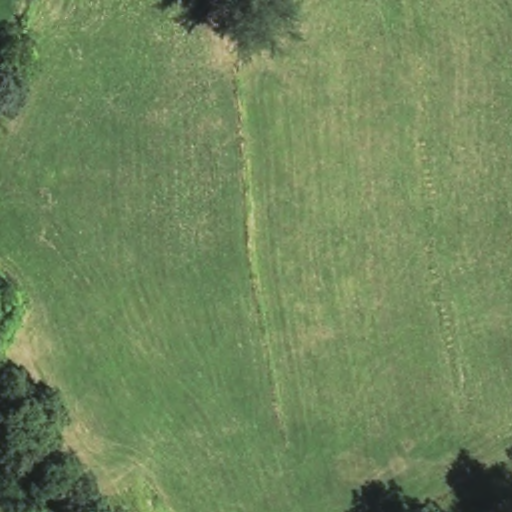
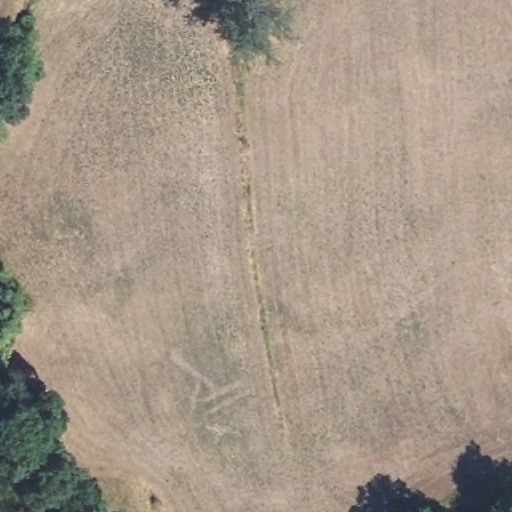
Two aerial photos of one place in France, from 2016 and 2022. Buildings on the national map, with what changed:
[]

